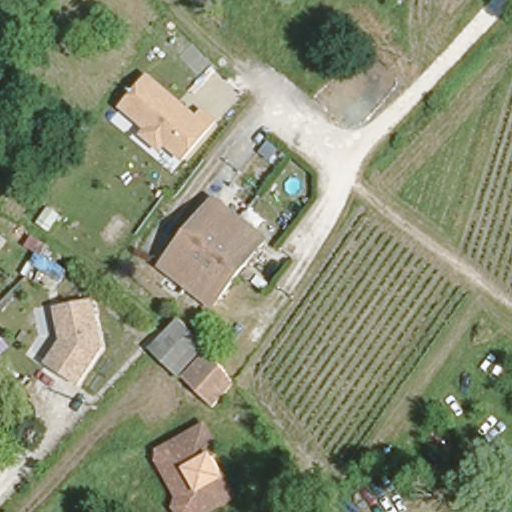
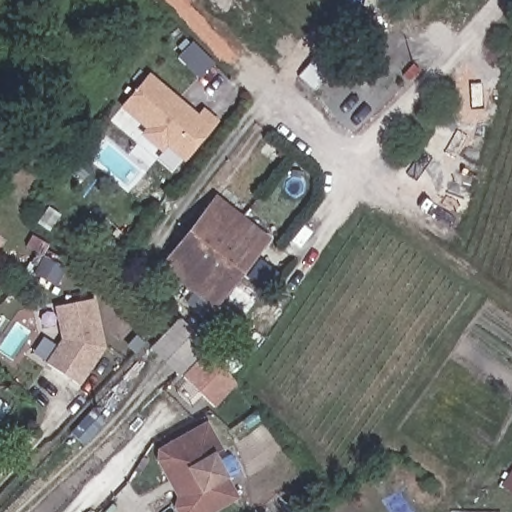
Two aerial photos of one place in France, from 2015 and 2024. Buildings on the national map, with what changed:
unchanged [(182,164),(163,147),(159,151),(142,136),(145,132),(118,108),(148,71),(197,114),(202,107),(218,120),(182,164)]
unchanged [(215,196),(269,237),(213,311),(160,266),(215,196)]
unchanged [(67,335),(59,303),(96,295),(106,344),(81,381),(51,360),(67,335)]
unchanged [(187,385),(158,361),(145,349),(164,328),(171,321),(184,332),(211,358),(187,385)]
unchanged [(232,383),(212,407),(187,385),(211,358),(232,383)]
unchanged [(210,449),(203,454),(229,495),(204,512),(190,512),(182,500),(196,489),(182,467),(176,470),(159,445),(193,423),(210,449)]
unchanged [(173,498),(147,459),(149,451),(159,445),(176,470),(182,467),(196,489),(182,500),(190,512),(171,512),(168,508),(173,498)]
unchanged [(512,478),(512,481),(511,480),(512,478)]

